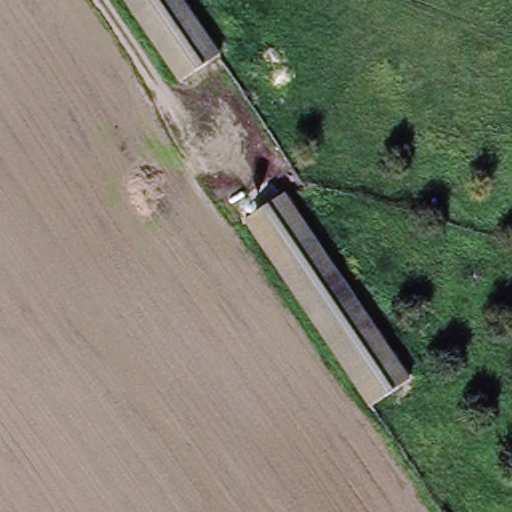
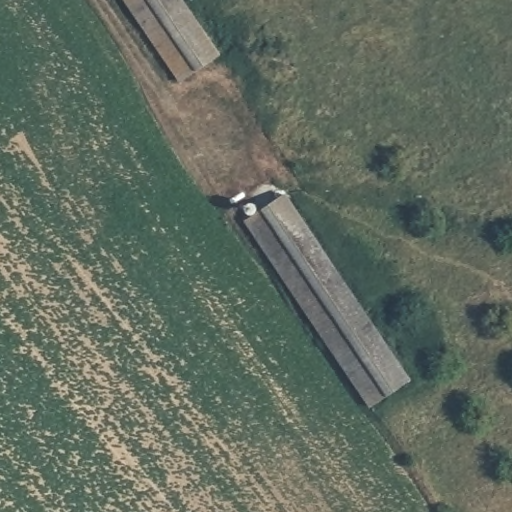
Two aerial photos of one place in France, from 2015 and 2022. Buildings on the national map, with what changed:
unchanged [(181,77),(128,0),(184,0),(219,50),(181,77)]
unchanged [(287,192),(413,379),(375,405),(249,217),(287,192)]

